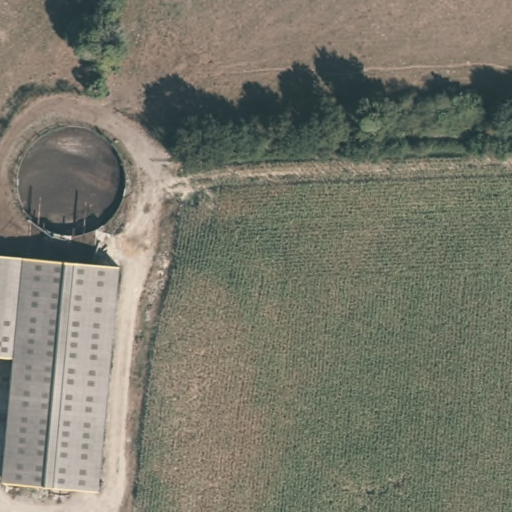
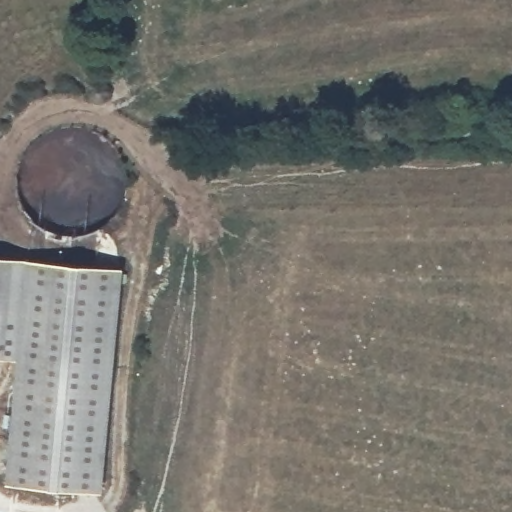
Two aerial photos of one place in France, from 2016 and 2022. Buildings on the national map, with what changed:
unchanged [(120,267),(95,491),(0,480),(0,470),(18,357),(0,355),(0,256),(120,267)]

